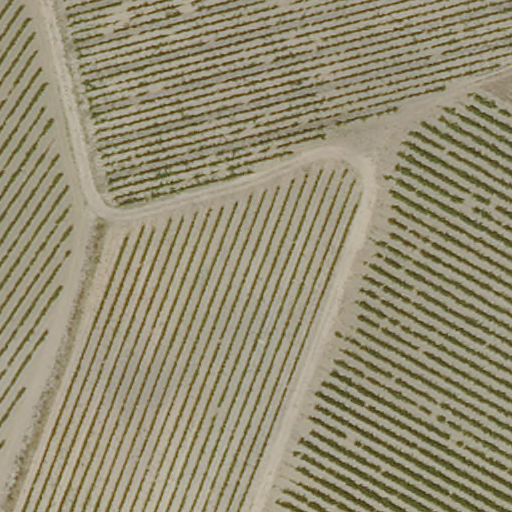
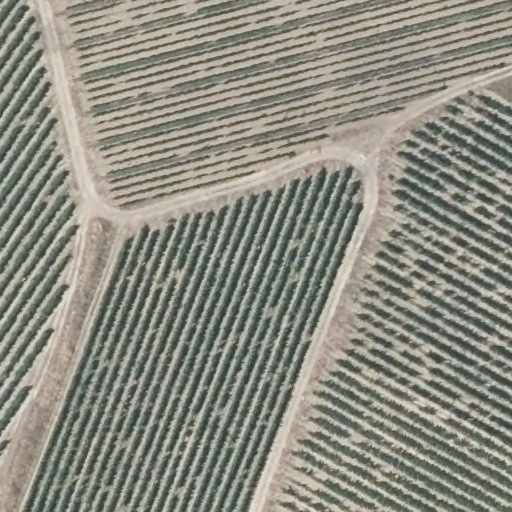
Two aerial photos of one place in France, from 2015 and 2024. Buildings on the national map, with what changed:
[]

